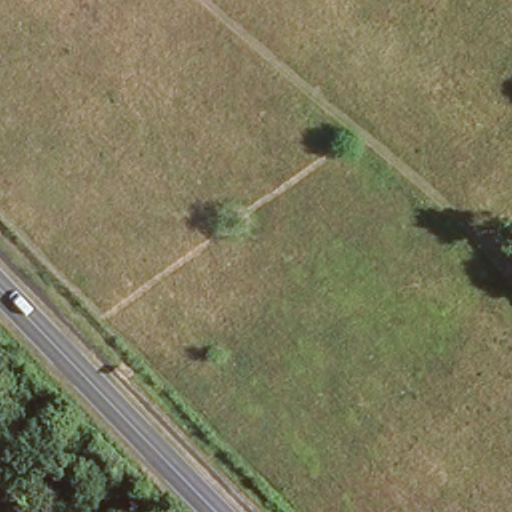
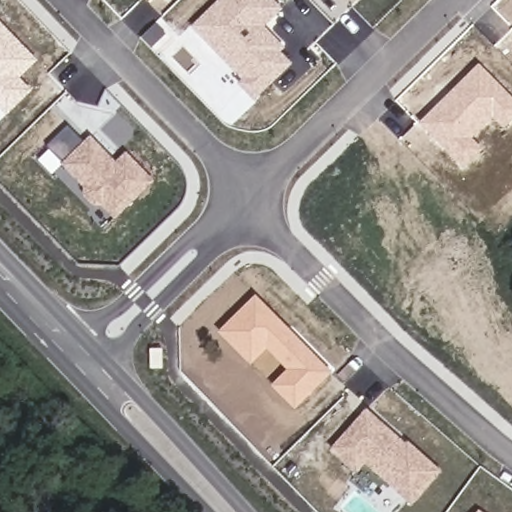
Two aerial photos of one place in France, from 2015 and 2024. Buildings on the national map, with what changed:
new [(146,1),(145,0),(146,0),(146,1)]
new [(240,81),(190,29),(219,0),(273,0),(282,10),(265,28),(284,49),(282,53),(292,64),(254,102),(236,85),(240,81)]
new [(346,2),(345,0),(348,0),(346,2)]
new [(7,117),(0,109),(0,23),(38,61),(20,79),(32,91),(7,117)]
new [(478,65),(512,99),(512,120),(503,129),(492,119),(472,139),(483,150),(463,170),(419,124),(478,65)]
new [(101,207),(94,207),(83,197),(83,189),(59,165),(61,163),(46,147),(66,127),(82,143),(89,136),(116,162),(125,152),(154,181),(114,221),(101,207)]
new [(271,386),(287,371),(266,350),(250,366),(218,333),(255,296),(332,374),(295,410),(271,386)]
new [(364,465),(357,475),(330,450),(366,410),(406,445),(407,442),(441,472),(411,507),(364,465)]
new [(482,512),(478,512),(479,510),(482,512)]

